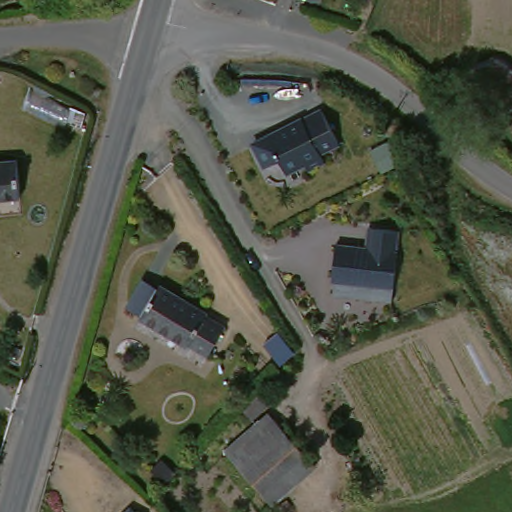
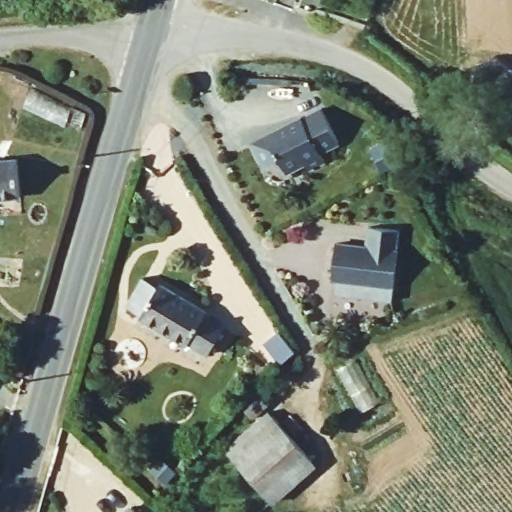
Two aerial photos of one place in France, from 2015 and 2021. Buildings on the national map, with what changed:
unchanged [(473,97),(473,72),(497,62),(512,73),(512,109),(487,122),(473,97)]
unchanged [(306,124),(321,157),(304,166),(308,174),(299,177),(276,136),(306,124)]
unchanged [(280,175),(267,180),(261,170),(248,175),(238,152),(276,136),(299,177),(290,182),(287,175),(280,175)]
unchanged [(17,197),(0,198),(0,163),(16,162),(17,197)]
unchanged [(331,296),(333,282),(331,282),(334,246),(364,249),(366,250),(368,230),(397,232),(395,252),(391,297),(391,303),(331,296)]
unchanged [(208,361),(187,348),(186,351),(140,324),(159,291),(207,319),(205,321),(224,333),(208,361)]
unchanged [(266,372),(249,352),(263,339),(281,359),(266,372)]
unchanged [(315,472),(272,508),(224,455),(267,417),(315,472)]

